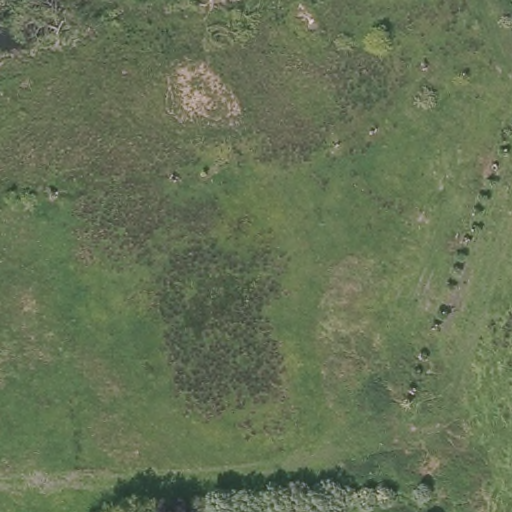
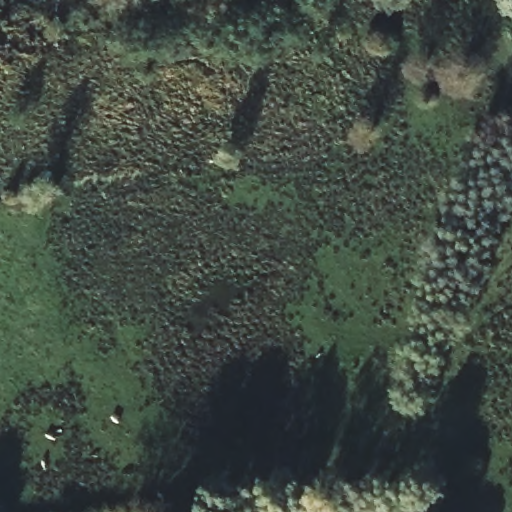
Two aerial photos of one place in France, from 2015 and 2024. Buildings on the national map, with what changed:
[]

